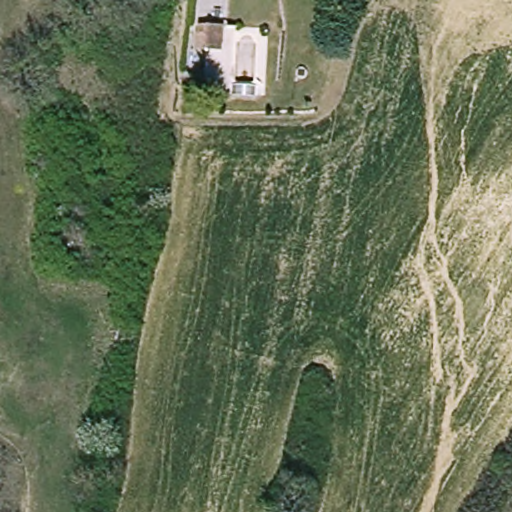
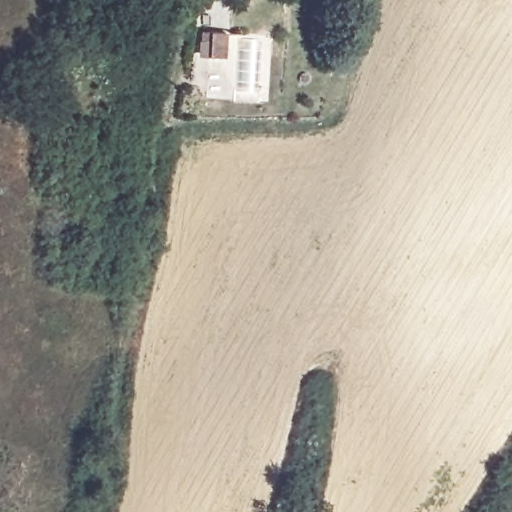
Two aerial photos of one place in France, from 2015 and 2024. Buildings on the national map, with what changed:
unchanged [(201,51),(205,26),(223,29),(219,54),(201,51)]

